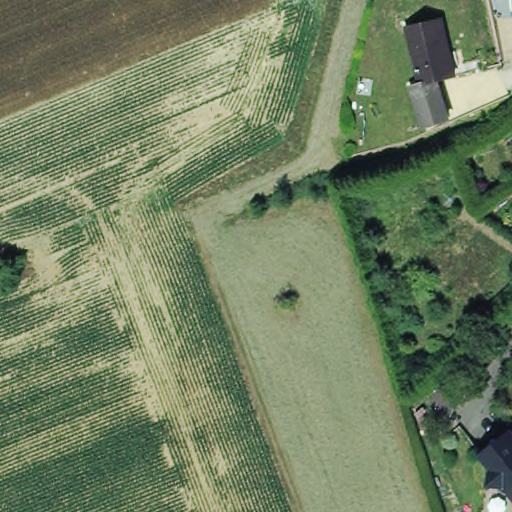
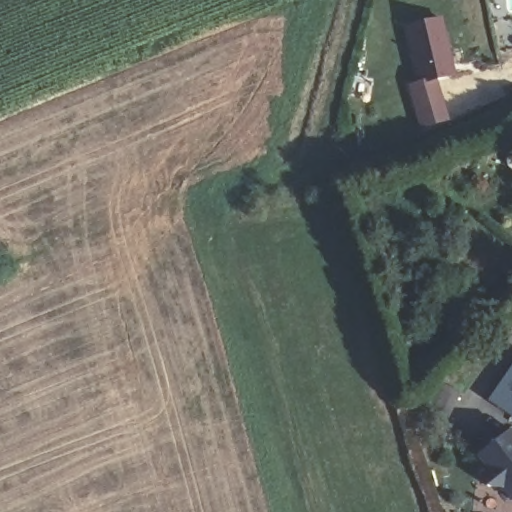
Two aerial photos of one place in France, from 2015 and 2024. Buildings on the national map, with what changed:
unchanged [(410,27),(445,19),(458,74),(440,79),(450,117),(427,124),(415,86),(422,84),(410,27)]
new [(512,368),(512,416),(490,400),(512,368)]
unchanged [(428,408),(434,396),(445,387),(460,395),(447,418),(428,408)]
unchanged [(487,469),(477,456),(495,443),(510,432),(512,435),(512,498),(507,493),(507,489),(483,484),(487,469)]

